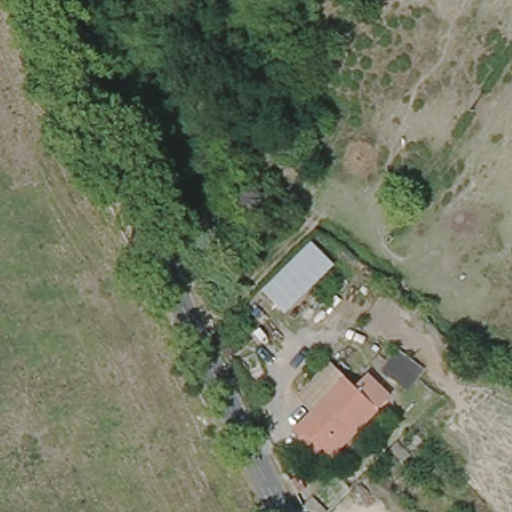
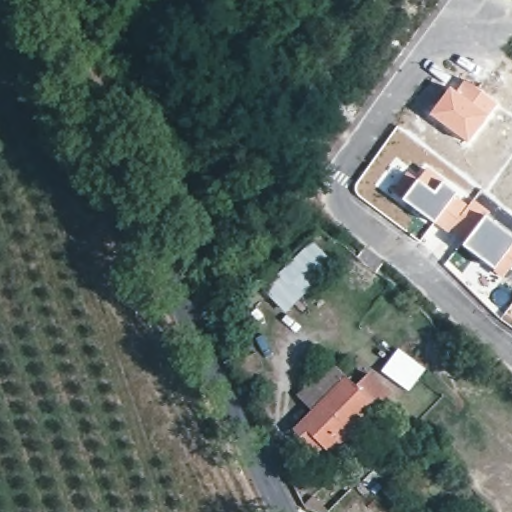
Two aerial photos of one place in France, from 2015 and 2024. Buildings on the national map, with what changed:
new [(450,86),(455,90),(463,79),(497,103),(467,144),(427,114),(450,86)]
new [(502,279),(461,246),(433,225),(402,200),(427,166),(460,191),(458,194),(469,203),(472,198),(490,211),(487,214),(512,233),(512,265),(502,279)]
unchanged [(307,240),(333,266),(315,290),(287,260),(307,240)]
unchanged [(287,260),(315,290),(286,314),(262,288),(287,260)]
unchanged [(397,387),(382,376),(397,354),(412,365),(397,387)]
unchanged [(310,451),(293,434),(313,415),(298,400),(330,367),(355,391),(367,378),(390,401),(332,460),(322,450),(315,456),(310,451)]
unchanged [(326,510),(324,512),(316,512),(305,508),(303,505),(312,496),(326,510)]

